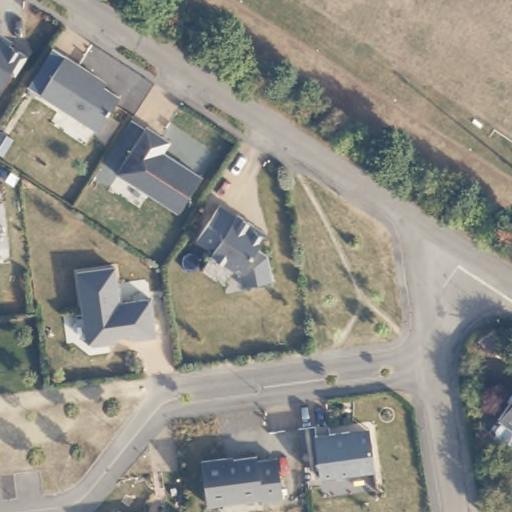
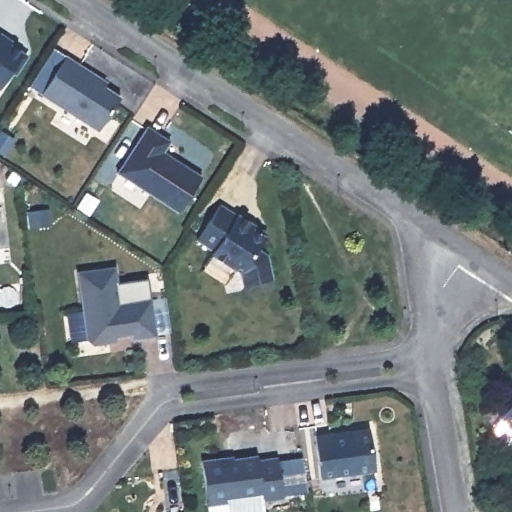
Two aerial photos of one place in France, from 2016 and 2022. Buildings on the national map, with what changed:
unchanged [(2,35),(3,39),(27,55),(15,72),(12,70),(0,87),(0,34),(2,35)]
unchanged [(65,53),(101,76),(98,81),(122,97),(100,130),(40,92),(65,53)]
unchanged [(168,143),(160,154),(198,179),(175,213),(113,174),(143,127),(161,139),(168,143)]
unchanged [(240,220),(241,218),(258,228),(255,232),(267,240),(260,252),(269,257),(275,283),(245,290),(241,276),(213,258),(215,255),(198,244),(221,208),(240,220)]
unchanged [(115,268),(119,304),(151,299),(156,337),(132,340),(131,335),(113,337),(109,343),(92,345),(86,341),(77,273),(115,268)]
unchanged [(512,442),(498,432),(496,425),(505,413),(501,410),(512,396),(512,442)]
unchanged [(346,427),(347,433),(367,430),(373,468),(317,476),(310,432),(346,427)]
unchanged [(226,454),(226,457),(257,453),(258,457),(277,455),(282,495),(262,497),(261,494),(207,501),(202,457),(226,454)]
unchanged [(183,510),(184,512),(173,512),(183,510)]

